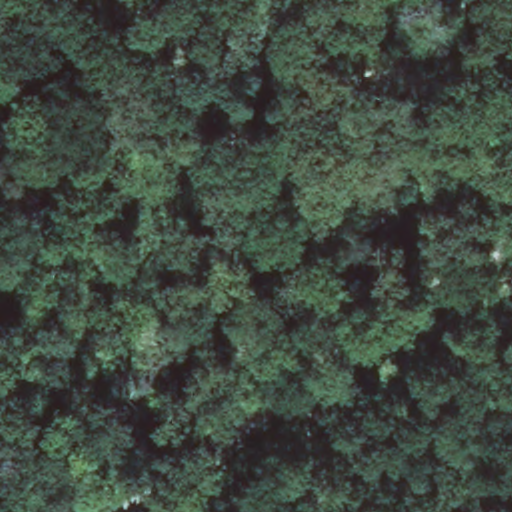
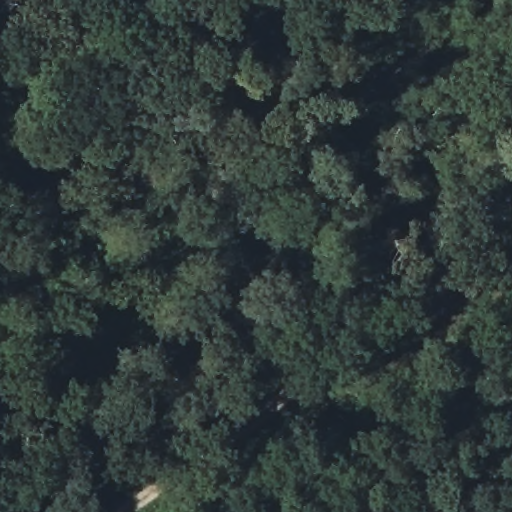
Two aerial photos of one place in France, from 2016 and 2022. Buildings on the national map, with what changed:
[]

